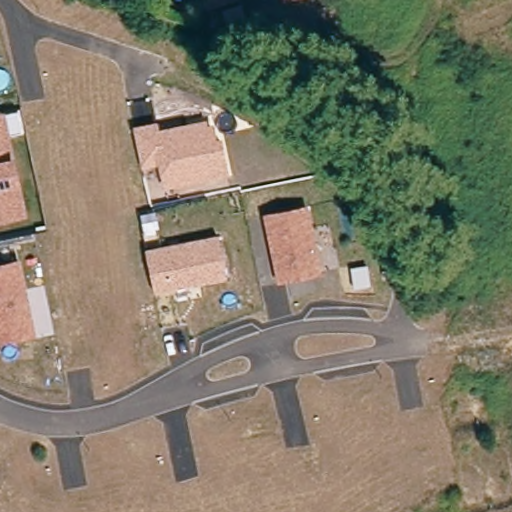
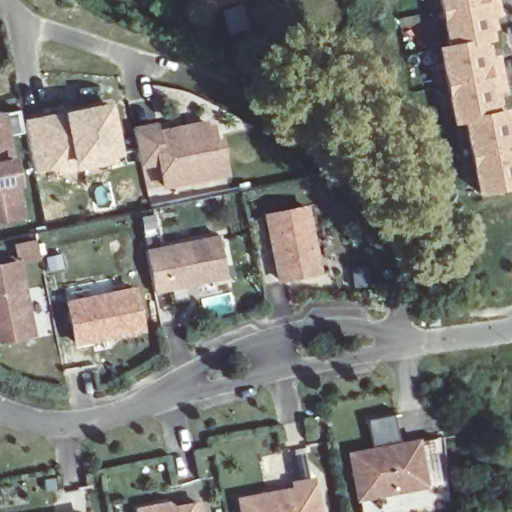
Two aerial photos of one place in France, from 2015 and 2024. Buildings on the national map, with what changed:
unchanged [(211,0),(216,0),(212,1),(211,0)]
new [(485,19),(488,40),(478,41),(482,62),(495,60),(501,92),(487,94),(491,115),(501,114),(512,179),(512,188),(471,194),(458,120),(448,122),(437,48),(447,46),(439,0),(495,0),(498,16),(485,19)]
new [(492,17),(494,29),(487,30),(485,19),(492,17)]
new [(480,50),(487,49),(489,61),(482,62),(480,50)]
new [(487,94),(495,93),(497,105),(489,106),(487,94)]
new [(63,111),(110,98),(122,155),(116,156),(118,163),(57,174),(56,169),(34,173),(24,118),(63,111)]
unchanged [(0,115),(6,114),(24,203),(27,217),(0,223),(0,115)]
unchanged [(157,121),(160,128),(207,119),(208,126),(212,125),(215,139),(221,138),(228,175),(162,188),(157,165),(142,170),(133,126),(157,121)]
new [(502,123),(510,122),(512,133),(505,135),(502,123)]
new [(510,166),(512,166),(512,178),(510,166)]
unchanged [(305,206),(317,271),(279,279),(266,214),(305,206)]
unchanged [(153,290),(145,250),(217,235),(225,276),(197,281),(187,284),(153,290)]
unchanged [(0,338),(0,263),(16,260),(27,319),(30,332),(15,335),(0,338)]
new [(143,332),(72,347),(64,301),(135,285),(143,332)]
new [(425,450),(432,495),(365,507),(357,463),(425,450)]
new [(237,496),(291,486),(290,479),(313,474),(321,512),(239,512),(237,496)]

